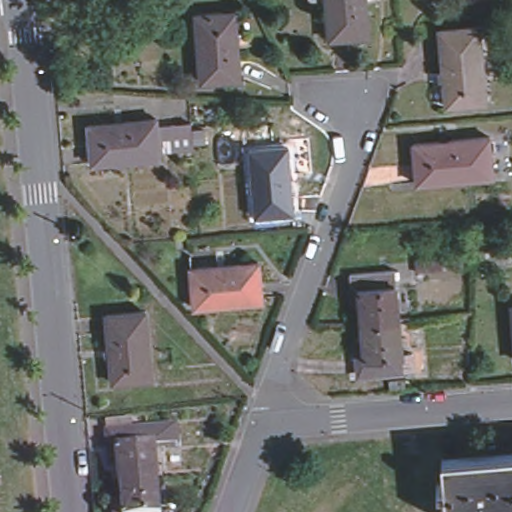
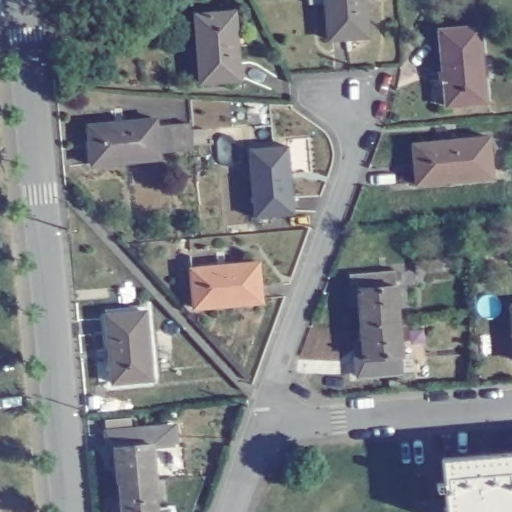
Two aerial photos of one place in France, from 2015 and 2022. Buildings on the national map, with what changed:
unchanged [(328,44),(324,0),(365,0),(368,41),(328,44)]
unchanged [(199,87),(193,19),(232,16),(238,84),(199,87)]
unchanged [(484,106),(442,109),(436,35),(478,31),(484,106)]
unchanged [(88,172),(84,133),(153,127),(156,167),(88,172)]
unchanged [(188,156),(168,158),(166,132),(186,130),(188,156)]
unchanged [(489,140),(494,178),(417,186),(413,148),(489,140)]
unchanged [(289,148),(295,216),(256,219),(249,152),(289,148)]
unchanged [(256,269),(259,308),(191,314),(188,274),(256,269)]
unchanged [(358,297),(351,298),(349,284),(393,279),(398,328),(361,331),(358,297)]
unchanged [(149,381),(109,384),(104,317),(143,313),(149,381)]
unchanged [(402,380),(357,384),(356,368),(364,367),(361,331),(398,328),(402,380)]
unchanged [(111,455),(103,455),(102,439),(101,426),(126,424),(128,437),(146,436),(168,434),(169,449),(148,451),(151,487),(114,489),(111,455)]
unchanged [(512,457),(512,512),(447,512),(442,463),(512,457)]
unchanged [(151,487),(152,512),(116,512),(114,489),(151,487)]

